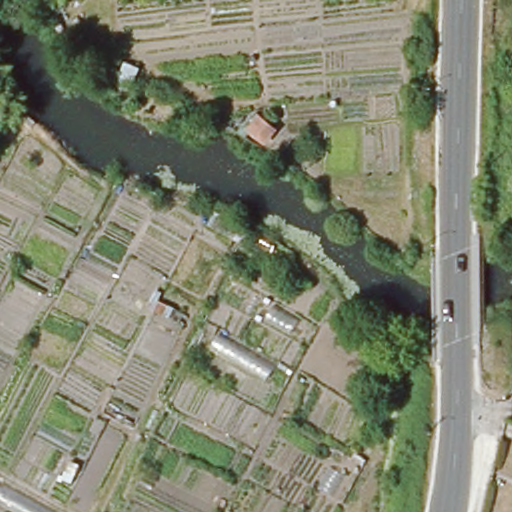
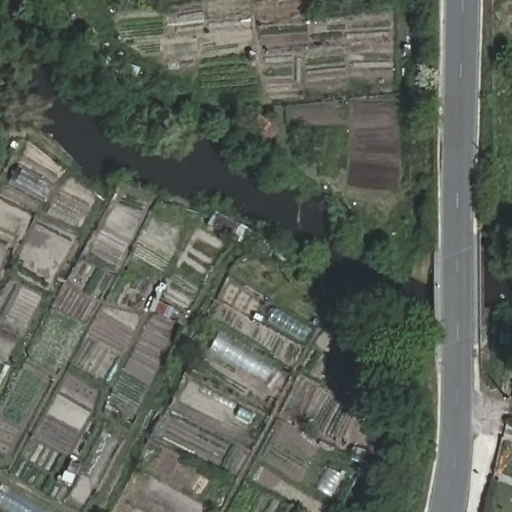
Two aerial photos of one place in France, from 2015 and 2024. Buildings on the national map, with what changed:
unchanged [(266,144),(250,130),(261,116),(278,130),(266,144)]
unchanged [(249,225),(242,240),(210,225),(217,210),(249,225)]

